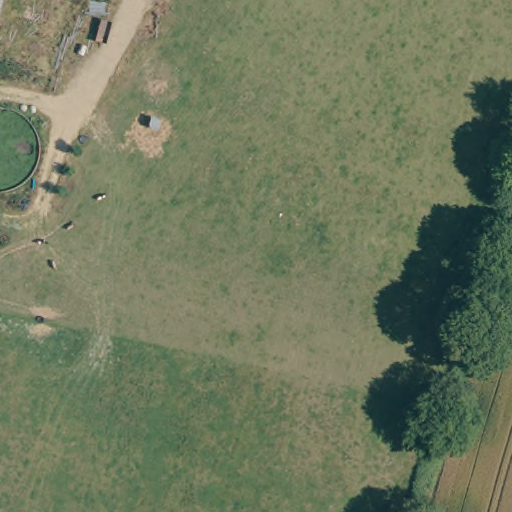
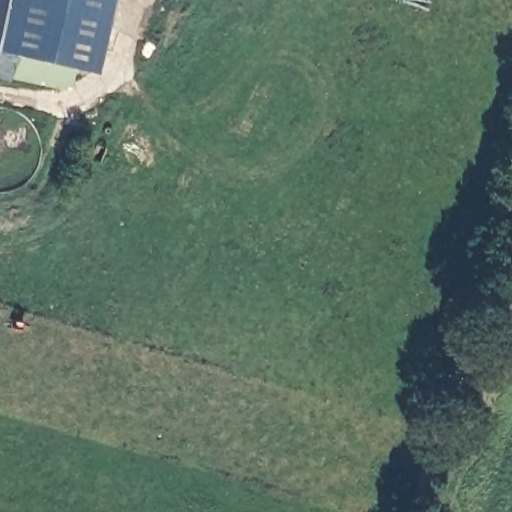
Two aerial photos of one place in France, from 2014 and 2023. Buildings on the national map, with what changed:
unchanged [(0,24),(0,0),(6,0),(1,24),(0,24)]
new [(0,53),(0,28),(1,24),(6,0),(110,0),(94,75),(0,53)]
new [(0,28),(0,24),(1,24),(0,28)]

